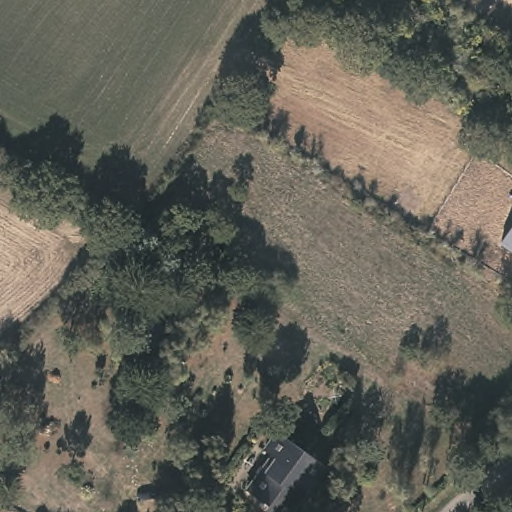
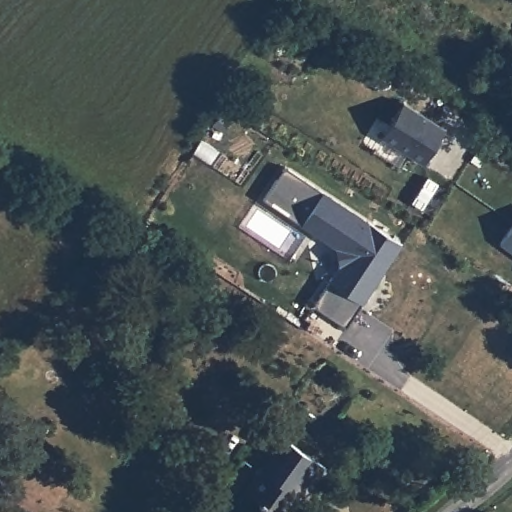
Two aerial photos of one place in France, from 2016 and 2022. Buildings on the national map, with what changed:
new [(404,102),(444,128),(422,161),(383,136),(404,102)]
new [(352,314),(323,297),(345,262),(341,246),(277,208),(295,178),(397,240),(387,255),(376,274),(352,314)]
unchanged [(512,229),(512,250),(502,243),(512,229)]
unchanged [(327,463),(314,483),(307,482),(299,494),(301,499),(293,512),(266,512),(258,507),(262,502),(246,492),(271,453),(261,447),(273,429),(327,463)]

